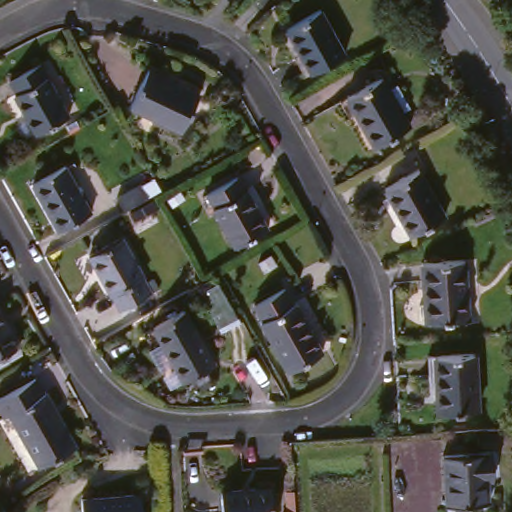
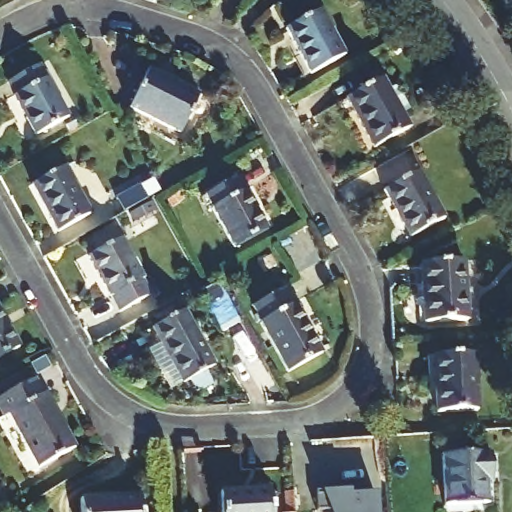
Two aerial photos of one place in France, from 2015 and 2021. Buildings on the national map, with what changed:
unchanged [(346,59),(309,77),(284,31),(321,12),(346,59)]
unchanged [(68,127),(34,145),(11,104),(15,102),(8,89),(38,72),(68,127)]
unchanged [(199,100),(180,138),(128,111),(146,73),(199,100)]
unchanged [(342,102),(378,82),(384,92),(392,88),(404,112),(398,116),(404,129),(369,150),(342,102)]
unchanged [(31,189),(64,171),(91,217),(57,235),(31,189)]
unchanged [(410,241),(383,192),(419,173),(446,222),(410,241)]
unchanged [(115,195),(139,182),(148,197),(123,211),(115,195)]
unchanged [(264,237),(229,257),(204,215),(208,213),(202,203),(231,186),(237,195),(239,194),(264,237)]
unchanged [(153,293),(119,311),(110,295),(109,296),(88,255),(121,236),(153,293)]
unchanged [(419,261),(464,258),(468,319),(423,322),(419,261)]
unchanged [(262,331),(265,329),(257,316),(289,297),(298,313),(300,312),(330,362),(294,384),(262,331)]
unchanged [(219,371),(210,375),(217,389),(199,397),(194,385),(186,387),(157,332),(189,316),(219,371)]
unchanged [(18,354),(0,364),(0,321),(18,354)]
unchanged [(478,415),(436,417),(433,361),(474,358),(478,415)]
unchanged [(8,414),(1,417),(0,414),(0,396),(33,377),(41,392),(44,392),(76,446),(38,467),(8,414)]
unchanged [(491,508),(448,510),(444,459),(496,456),(497,486),(491,485),(491,508)]
new [(353,492),(379,490),(381,512),(339,512),(338,505),(321,507),(319,490),(353,487),(353,492)]
unchanged [(265,492),(266,512),(213,512),(213,495),(265,492)]
unchanged [(135,512),(74,512),(74,507),(134,502),(135,512)]

